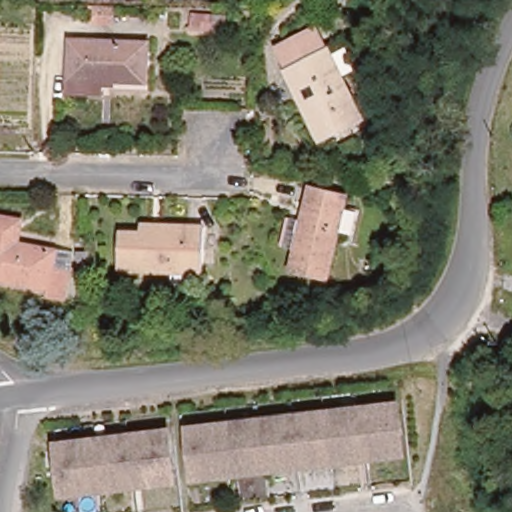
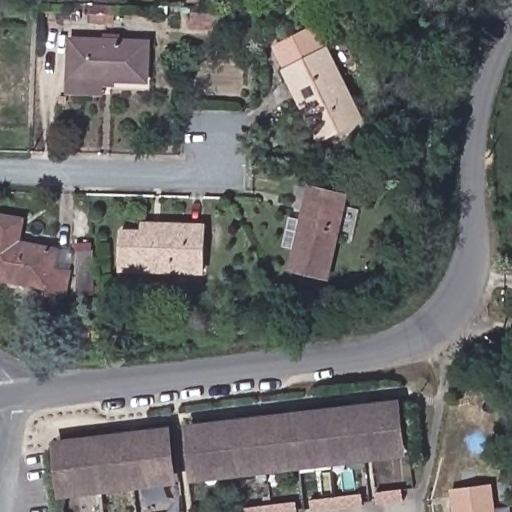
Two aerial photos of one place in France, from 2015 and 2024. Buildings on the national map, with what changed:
unchanged [(382,42),(368,41),(369,20),(383,20),(382,42)]
unchanged [(279,46),(319,31),(329,54),(289,69),(279,46)]
unchanged [(74,36),(151,40),(149,80),(73,76),(74,36)]
unchanged [(287,70),(289,69),(329,54),(332,54),(358,123),(314,142),(305,120),(294,90),(287,70)]
unchanged [(351,194),(329,279),(292,269),(312,184),(351,194)]
unchanged [(145,232),(145,224),(189,226),(207,227),(206,271),(123,270),(125,231),(145,232)]
unchanged [(54,261),(71,266),(64,296),(47,292),(49,284),(0,275),(0,234),(57,245),(54,261)]
unchanged [(381,411),(388,456),(192,486),(186,440),(381,411)]
unchanged [(153,445),(159,491),(61,505),(54,460),(153,445)]
new [(493,483),(495,512),(453,512),(450,488),(493,483)]

